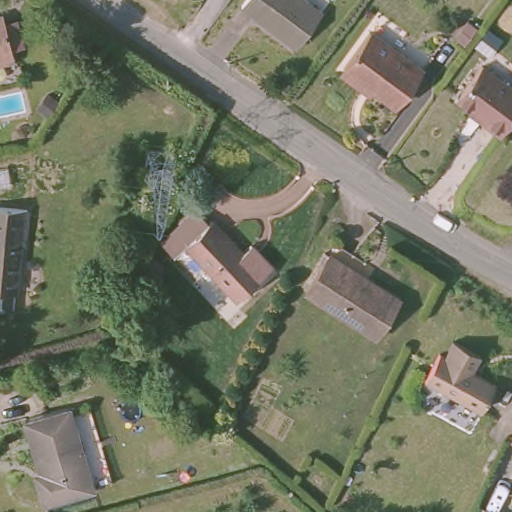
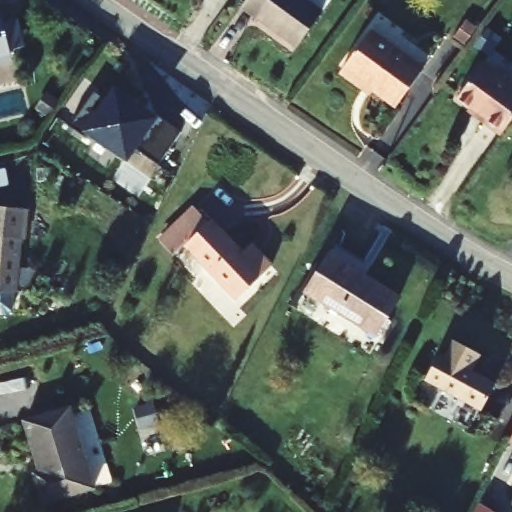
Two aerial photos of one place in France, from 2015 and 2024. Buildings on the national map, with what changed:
unchanged [(291,47),(236,6),(241,0),(301,0),(318,12),(291,47)]
unchanged [(11,54),(0,57),(0,15),(11,54)]
unchanged [(392,111),(339,72),(365,37),(418,75),(392,111)]
unchanged [(503,129),(484,114),(482,117),(456,97),(480,64),(512,88),(512,117),(503,129)]
new [(93,91),(108,101),(114,91),(153,118),(156,114),(181,131),(158,164),(133,147),(126,158),(88,131),(84,136),(69,126),(93,91)]
new [(10,188),(0,190),(0,169),(6,167),(10,188)]
unchanged [(20,243),(16,295),(0,294),(0,211),(27,213),(24,243),(20,243)]
unchanged [(236,257),(243,264),(252,255),(266,270),(233,303),(181,249),(206,225),(236,257)]
unchanged [(166,256),(156,246),(175,228),(184,238),(166,256)]
unchanged [(252,255),(236,257),(246,248),(252,255)]
unchanged [(400,296),(376,335),(306,291),(329,253),(400,296)]
unchanged [(440,360),(449,344),(476,359),(467,375),(491,388),(476,415),(421,385),(435,357),(440,360)]
unchanged [(93,487),(43,502),(36,479),(41,477),(24,421),(69,408),(93,487)]
unchanged [(507,442),(512,432),(512,445),(507,442)]

